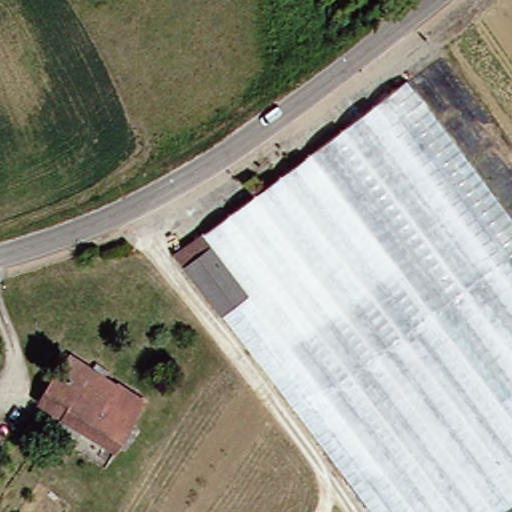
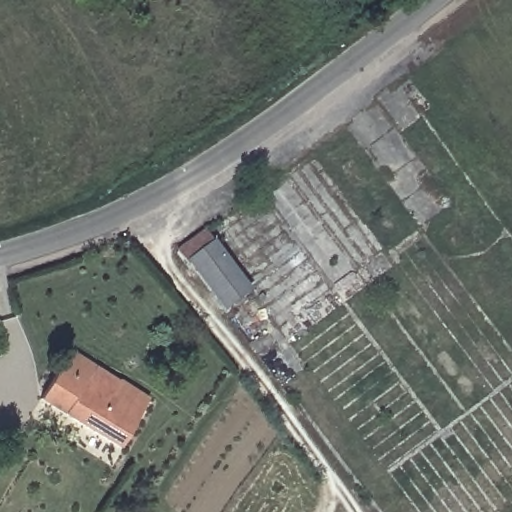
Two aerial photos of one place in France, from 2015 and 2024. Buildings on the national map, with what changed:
demolished [(245,291),(217,311),(179,264),(170,254),(201,230),(403,80),(512,223),(512,501),(497,512),(409,512),(245,291)]
new [(177,251),(203,231),(250,292),(224,312),(177,251)]
unchanged [(53,369),(57,370),(68,355),(143,400),(112,451),(31,404),(53,369)]

